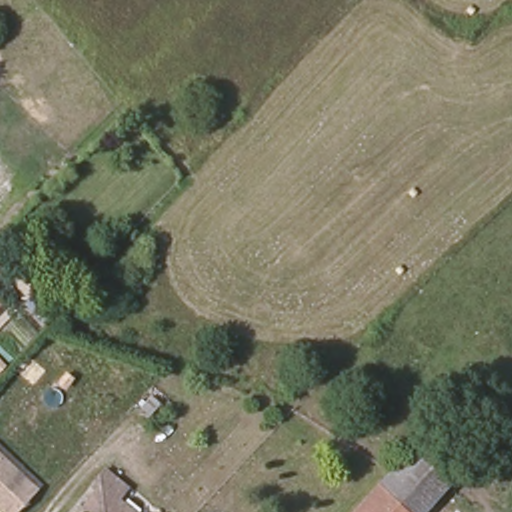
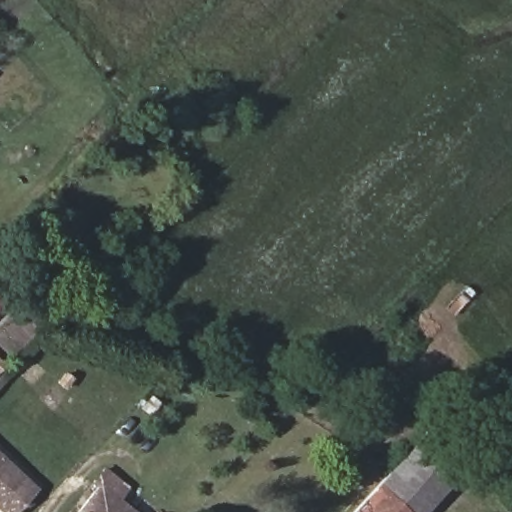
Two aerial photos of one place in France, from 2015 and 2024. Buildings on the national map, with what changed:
unchanged [(0,310),(0,300),(5,306),(0,310)]
unchanged [(422,512),(401,512),(376,490),(412,448),(449,482),(422,512)]
unchanged [(35,490),(13,512),(6,512),(0,507),(0,459),(35,490)]
unchanged [(136,495),(126,505),(135,512),(87,512),(109,490),(101,485),(111,473),(136,495)]
unchanged [(376,490),(401,512),(357,512),(376,490)]

